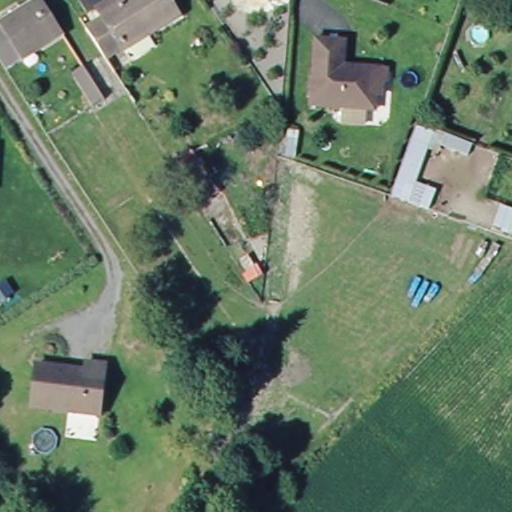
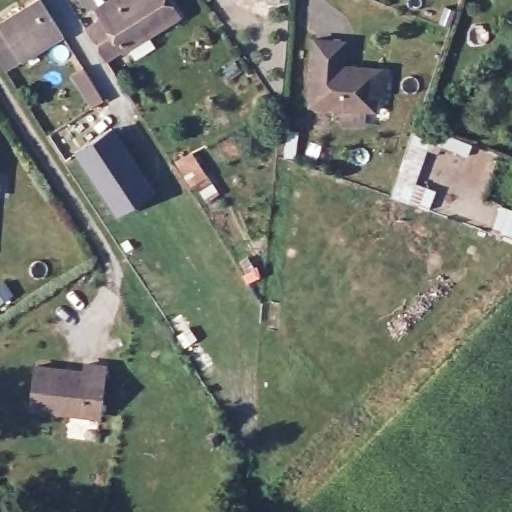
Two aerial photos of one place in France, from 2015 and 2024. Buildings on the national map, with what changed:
unchanged [(7,21),(38,0),(52,0),(71,30),(31,55),(16,65),(0,40),(0,26),(7,21)]
unchanged [(125,0),(125,1),(126,0),(180,0),(190,15),(126,56),(102,16),(94,2),(99,0),(125,0)]
unchanged [(109,69),(122,96),(100,111),(76,75),(105,58),(87,25),(102,16),(126,56),(109,69)]
unchanged [(390,89),(375,89),(375,106),(369,111),(310,109),(309,101),(304,100),(305,77),(315,76),(315,68),(315,38),(344,41),(344,71),(390,73),(390,89)]
new [(115,126),(157,192),(118,216),(74,153),(115,126)]
unchanged [(467,156),(438,148),(436,154),(427,151),(414,184),(436,192),(428,211),(391,197),(415,128),(432,133),(433,130),(472,144),(467,156)]
unchanged [(199,176),(214,197),(202,205),(188,184),(199,176)]
unchanged [(500,206),(512,209),(512,236),(492,229),(500,206)]
unchanged [(230,265),(240,258),(250,273),(240,280),(239,277),(230,265)]
unchanged [(174,350),(150,314),(160,309),(199,370),(190,376),(174,350)]
unchanged [(82,371),(84,363),(105,364),(100,415),(31,410),(35,367),(82,371)]

